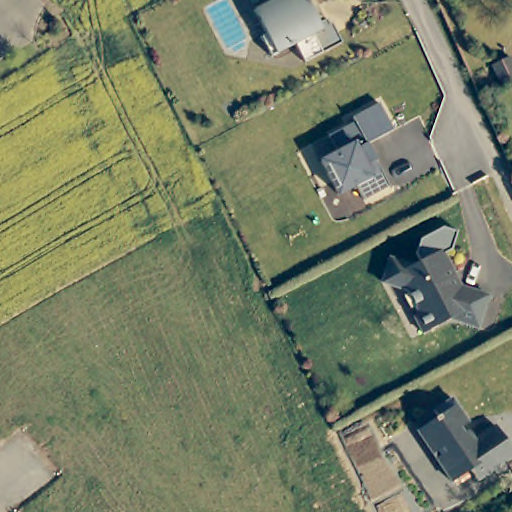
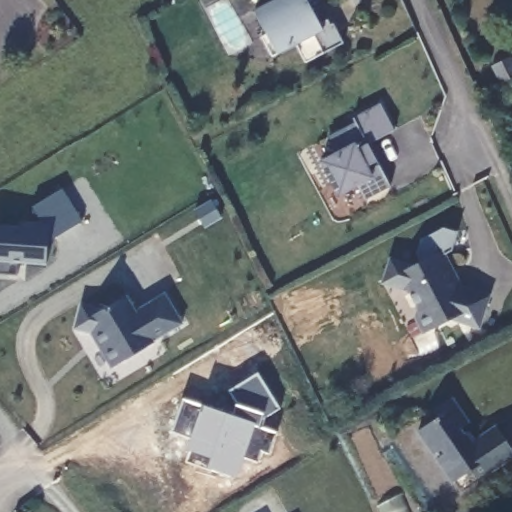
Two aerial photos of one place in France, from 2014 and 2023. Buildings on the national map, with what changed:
unchanged [(277,56),(266,36),(271,33),(259,10),(277,1),(276,0),(313,0),(311,1),(322,22),(331,18),(334,23),(336,22),(347,41),(310,61),(300,43),(277,56)]
unchanged [(497,72),(512,66),(512,88),(506,91),(497,72)]
unchanged [(324,159),(341,150),(332,134),(359,121),(357,116),(384,102),(398,129),(372,143),(393,185),(367,198),(359,183),(342,192),(324,159)]
new [(47,264),(19,262),(17,274),(0,273),(0,224),(19,225),(20,220),(40,221),(32,207),(62,188),(81,223),(49,243),(47,264)]
unchanged [(416,266),(446,250),(458,273),(453,276),(460,290),(464,287),(492,296),(483,328),(454,319),(426,334),(418,318),(421,310),(410,291),(385,282),(393,258),(416,266)]
new [(136,310),(164,293),(183,323),(112,368),(92,334),(73,330),(79,301),(102,308),(127,295),(136,310)]
new [(193,442),(171,434),(183,401),(206,410),(205,414),(221,420),(222,416),(232,420),(237,408),(227,392),(257,374),(279,410),(255,424),(252,431),(259,434),(260,430),(278,437),(269,460),(262,457),(257,468),(240,462),(232,482),(209,473),(184,464),(189,451),(193,442)]
unchanged [(472,473),(453,485),(418,434),(440,420),(436,414),(453,402),(470,426),(462,432),(465,437),(470,433),(473,436),(475,439),(477,443),(497,430),(512,451),(512,463),(480,483),(472,473)]

